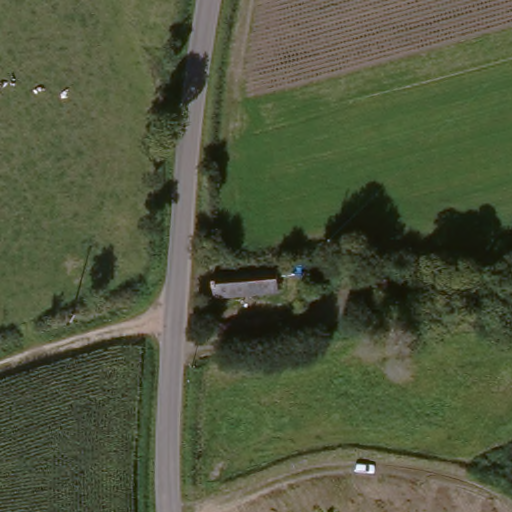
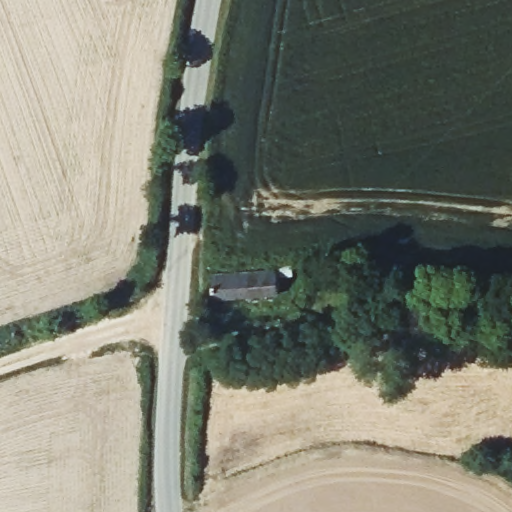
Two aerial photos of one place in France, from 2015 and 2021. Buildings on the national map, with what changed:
unchanged [(279,268),(282,290),(219,293),(217,273),(279,268)]

